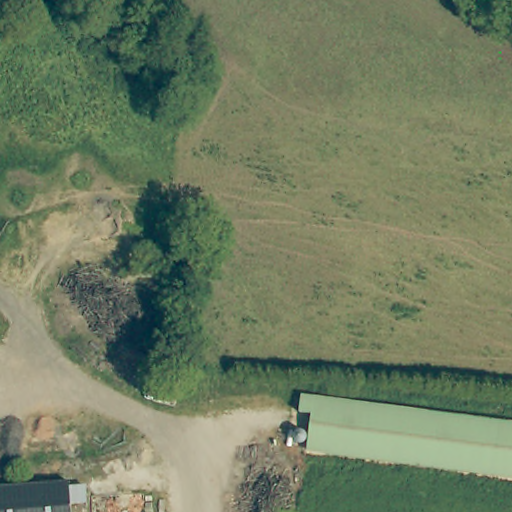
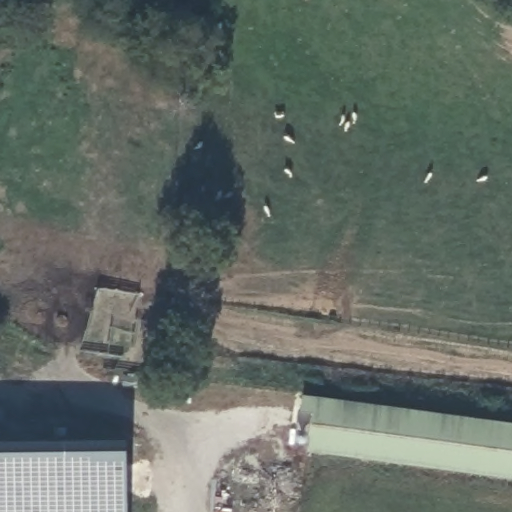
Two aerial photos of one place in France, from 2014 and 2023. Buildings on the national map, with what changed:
unchanged [(304,450),(308,419),(297,418),(299,394),(309,394),(309,399),(512,425),(512,478),(304,450)]
new [(128,512),(0,512),(0,441),(126,440),(128,512)]
demolished [(69,502),(69,512),(0,512),(0,484),(67,480),(68,486),(83,484),(84,501),(69,502)]

